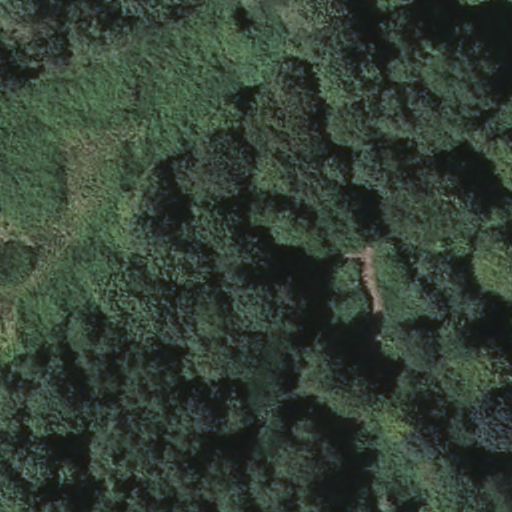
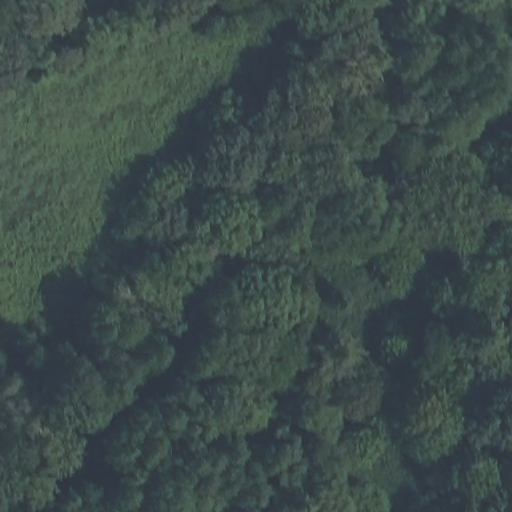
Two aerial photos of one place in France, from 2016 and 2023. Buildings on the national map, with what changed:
unchanged [(198,301),(240,320),(230,342),(188,321),(198,301)]

